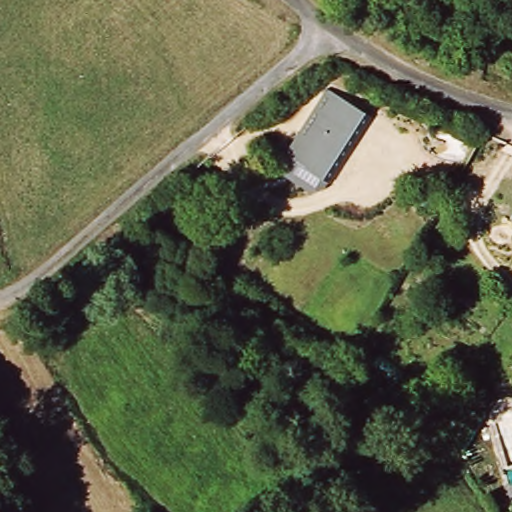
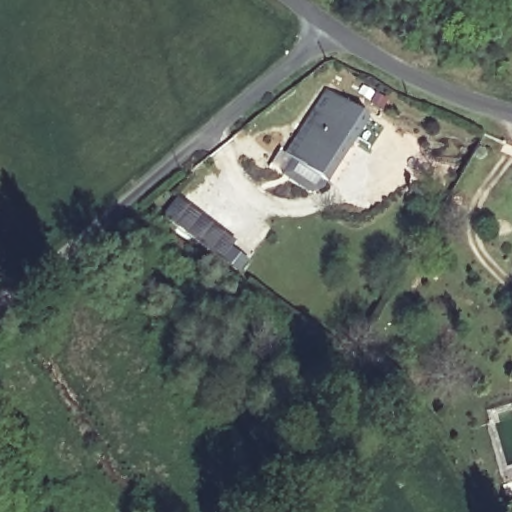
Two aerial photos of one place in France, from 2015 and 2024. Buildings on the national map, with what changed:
unchanged [(329,177),(291,150),(332,91),(370,118),(329,177)]
new [(168,211),(171,213),(181,200),(202,217),(199,221),(204,225),(211,224),(236,244),(223,260),(164,215),(168,211)]

